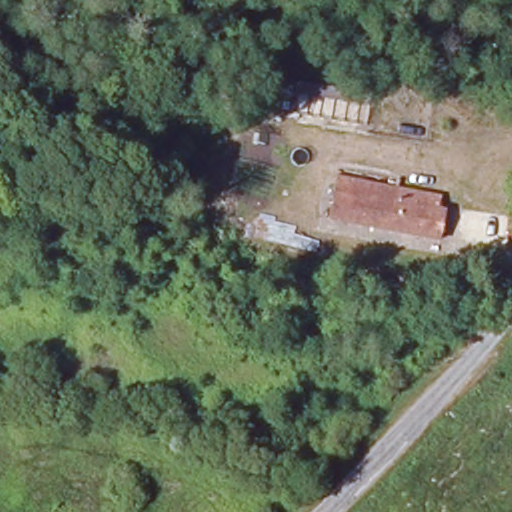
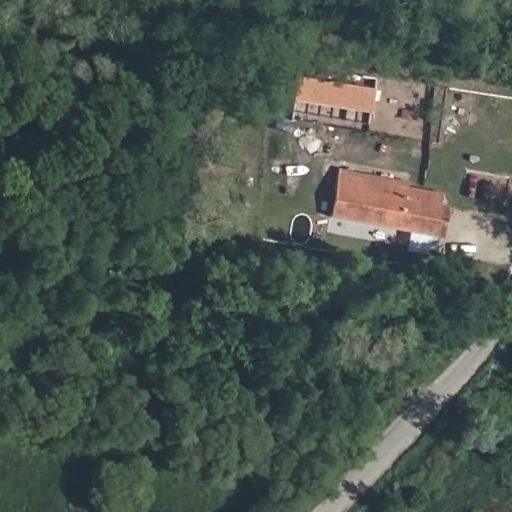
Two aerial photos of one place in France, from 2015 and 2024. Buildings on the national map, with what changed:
new [(293,102),(297,79),(374,90),(371,113),(293,102)]
unchanged [(333,178),(444,199),(436,242),(325,225),(333,178)]

